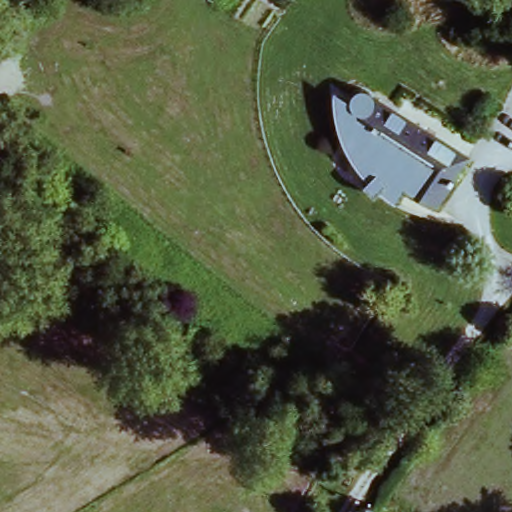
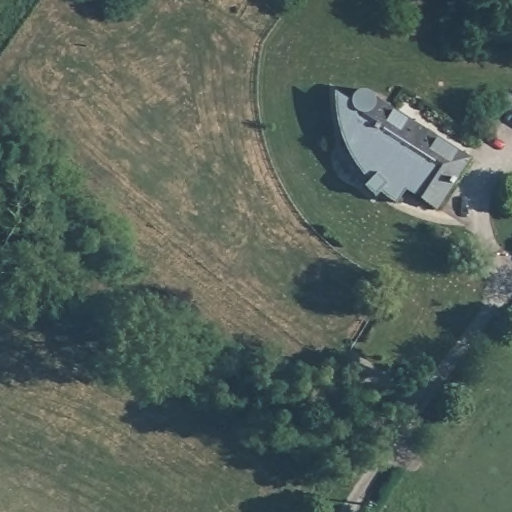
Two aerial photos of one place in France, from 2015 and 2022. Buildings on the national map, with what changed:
unchanged [(440,204),(410,184),(401,198),(385,188),(380,194),(370,184),(375,180),(350,138),(345,127),(343,117),(354,100),(378,96),(470,156),(440,204)]

